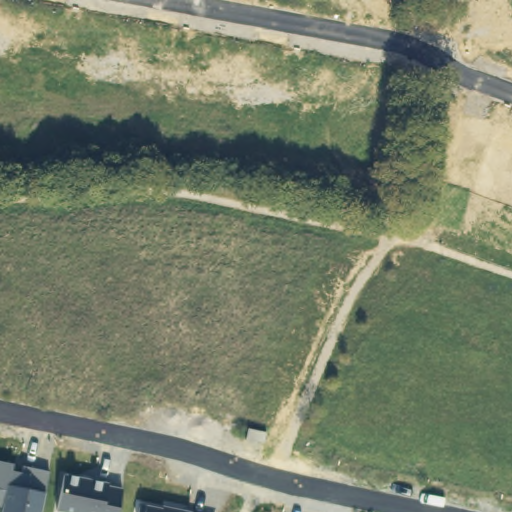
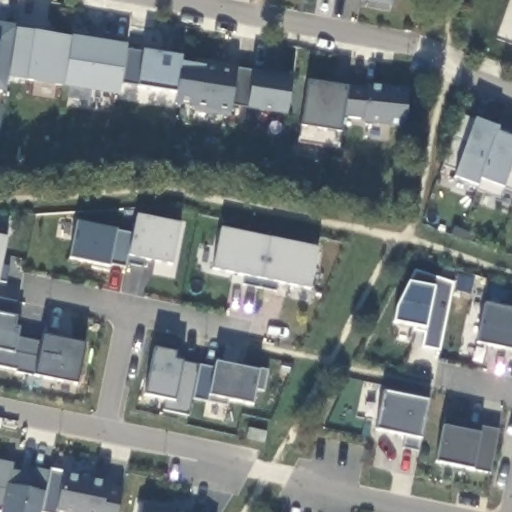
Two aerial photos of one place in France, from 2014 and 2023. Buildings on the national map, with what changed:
new [(349,0),(394,0),(393,7),(349,0)]
new [(7,80),(11,81),(5,93),(0,92),(0,24),(12,25),(17,30),(7,80)]
new [(17,30),(72,37),(127,46),(127,51),(144,52),(181,58),(181,62),(237,69),(254,72),(292,77),(287,114),(247,110),(232,107),(230,116),(191,111),(192,108),(175,105),(177,93),(138,87),(120,85),(119,97),(64,90),(7,80),(17,30)]
new [(301,127),(307,82),(348,88),(366,89),(366,85),(409,90),(407,129),(364,125),(365,119),(343,116),(340,133),(337,148),(300,144),(301,127)]
new [(474,123),(476,120),(499,128),(497,132),(512,138),(512,191),(505,188),(498,200),(477,192),(478,188),(455,180),(457,173),(442,167),(462,117),(474,123)]
new [(143,261),(141,268),(122,264),(131,214),(137,215),(181,225),(171,267),(143,261)]
new [(122,264),(108,268),(69,260),(77,225),(116,232),(128,233),(122,264)]
new [(278,285),(276,291),(243,285),(244,276),(214,271),(222,229),(317,249),(310,290),(278,285)]
new [(7,239),(0,275),(0,237),(7,239)]
new [(423,347),(426,334),(414,331),(414,326),(394,322),(397,307),(409,281),(416,271),(453,284),(441,352),(423,347)]
new [(487,305),(494,302),(512,306),(512,352),(478,345),(487,305)]
new [(77,385),(36,377),(17,373),(15,370),(0,367),(0,351),(0,315),(17,318),(15,327),(20,328),(19,338),(43,344),(45,337),(86,345),(77,385)]
new [(264,391),(256,389),(252,405),(231,402),(227,406),(191,400),(188,415),(164,411),(170,401),(144,396),(155,351),(176,355),(175,361),(183,363),(215,369),(217,363),(260,373),(268,372),(264,391)]
new [(385,393),(428,401),(421,440),(377,431),(385,393)]
unchanged [(249,428),(265,432),(263,442),(246,439),(249,428)]
new [(481,435),(482,428),(499,432),(490,473),(472,470),(437,463),(444,430),(481,435)]
unchanged [(4,507),(0,507),(0,461),(14,464),(12,475),(21,476),(23,466),(50,471),(42,512),(3,512),(4,507)]
unchanged [(109,484),(108,486),(123,490),(118,512),(59,512),(57,511),(65,475),(109,484)]
unchanged [(140,505),(173,511),(174,509),(189,512),(138,512),(140,505)]

